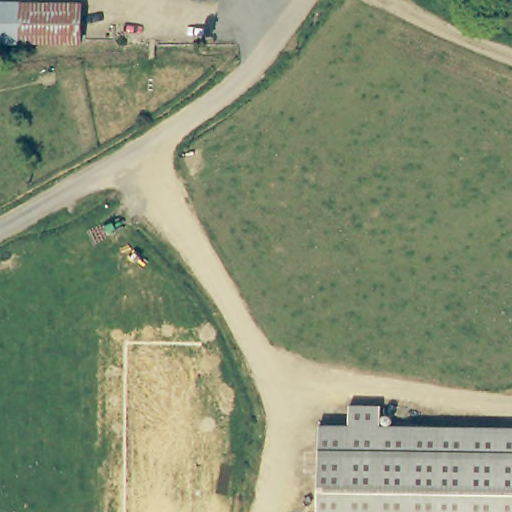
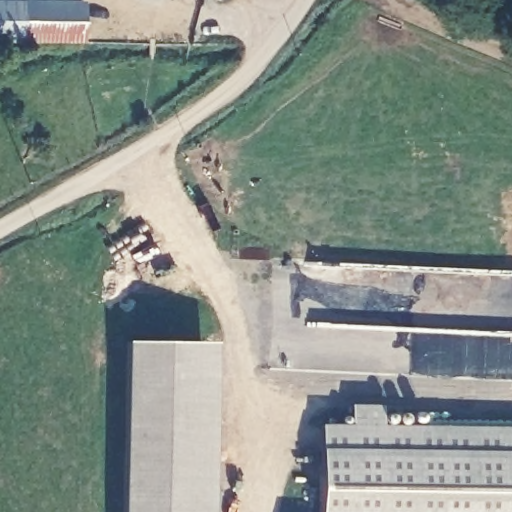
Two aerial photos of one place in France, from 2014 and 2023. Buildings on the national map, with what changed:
unchanged [(0,44),(0,3),(82,4),(80,46),(0,44)]
new [(215,343),(213,512),(121,512),(124,341),(215,343)]
unchanged [(349,425),(350,406),(381,407),(382,415),(388,416),(391,417),(392,421),(392,426),(512,428),(512,512),(318,512),(320,425),(349,425)]

